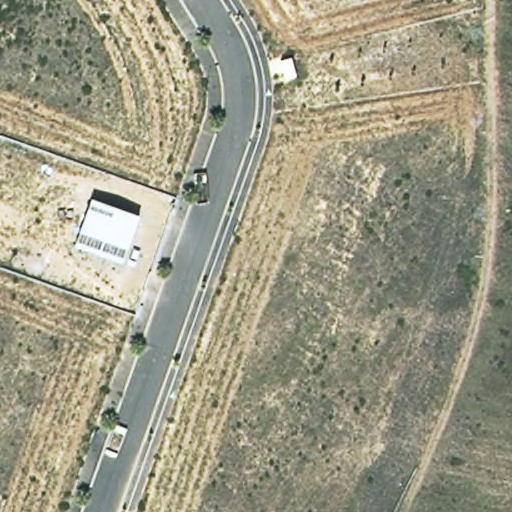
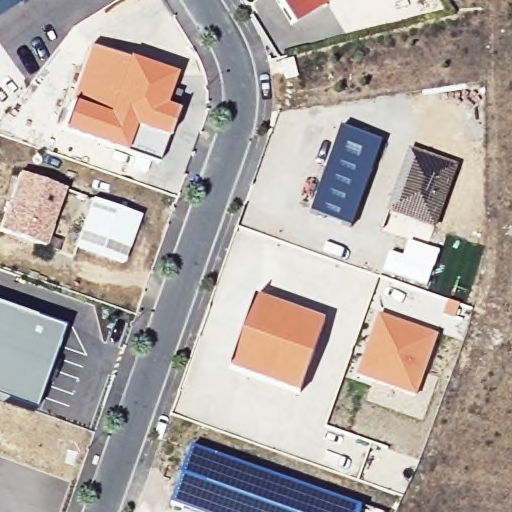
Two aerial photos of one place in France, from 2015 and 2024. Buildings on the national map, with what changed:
new [(0,0),(23,0),(0,15),(0,0)]
new [(290,25),(275,0),(323,0),(325,3),(290,25)]
new [(172,73),(162,105),(174,109),(164,137),(155,163),(122,152),(59,130),(70,102),(87,46),(127,58),(172,73)]
new [(330,152),(343,122),(385,138),(352,226),(310,211),(330,152)]
new [(0,231),(0,223),(17,173),(62,188),(44,246),(0,231)]
unchanged [(140,216),(122,263),(76,247),(92,200),(140,216)]
new [(389,251),(402,255),(407,240),(440,251),(426,288),(381,272),(389,251)]
new [(299,395),(227,370),(253,298),(324,323),(299,395)]
new [(0,400),(0,306),(61,327),(31,410),(0,400)]
new [(437,335),(415,397),(355,376),(377,314),(437,335)]
new [(358,512),(184,512),(167,506),(187,446),(360,507),(358,512)]

